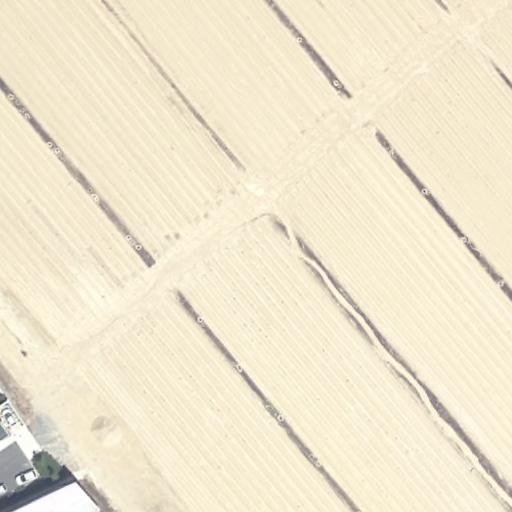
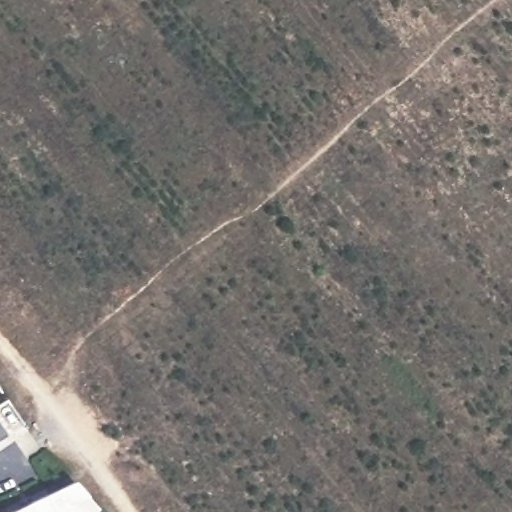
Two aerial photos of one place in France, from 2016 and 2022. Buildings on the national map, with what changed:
unchanged [(0,440),(0,423),(7,435),(0,440)]
unchanged [(88,497),(98,509),(96,512),(9,512),(75,480),(88,497)]

